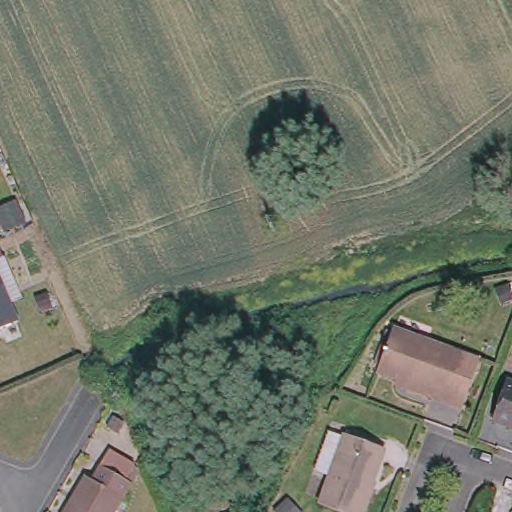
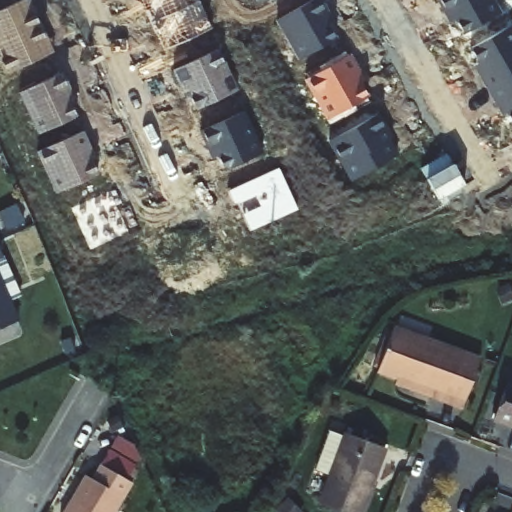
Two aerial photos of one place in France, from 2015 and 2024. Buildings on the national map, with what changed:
new [(0,9),(21,0),(31,0),(55,51),(3,74),(0,68),(0,9)]
new [(199,0),(212,28),(164,49),(141,0),(199,0)]
new [(266,0),(255,5),(252,0),(266,0)]
new [(313,0),(322,0),(334,22),(329,25),(336,38),(298,59),(275,20),(313,0)]
new [(495,0),(502,11),(462,34),(454,20),(449,22),(436,0),(495,0)]
new [(507,111),(502,114),(474,65),(479,62),(470,48),(511,26),(512,28),(512,121),(507,111)]
new [(172,70),(219,48),(238,89),(196,110),(190,96),(185,98),(172,70)]
new [(303,79),(350,53),(365,83),(362,85),(369,96),(326,119),(303,79)]
new [(18,93),(62,72),(75,100),(71,102),(77,116),(37,134),(18,93)]
new [(199,130),(245,111),(263,152),(222,171),(215,155),(210,157),(199,130)]
new [(327,142),(379,114),(393,139),(390,141),(397,154),(350,181),(327,142)]
new [(35,151),(84,130),(97,157),(92,160),(98,173),(55,192),(35,151)]
new [(242,214),(259,205),(255,196),(235,205),(227,190),(277,167),(297,209),(250,231),(242,214)]
unchanged [(7,257),(23,295),(12,300),(22,321),(0,330),(0,249),(5,258),(7,257)]
unchanged [(462,409),(430,398),(432,393),(378,372),(394,328),(480,359),(462,409)]
unchanged [(501,419),(512,391),(512,424),(501,419)]
unchanged [(382,448),(359,512),(343,512),(318,503),(344,434),(382,448)]
unchanged [(135,466),(129,478),(137,482),(119,512),(69,512),(90,477),(97,478),(112,453),(135,466)]

